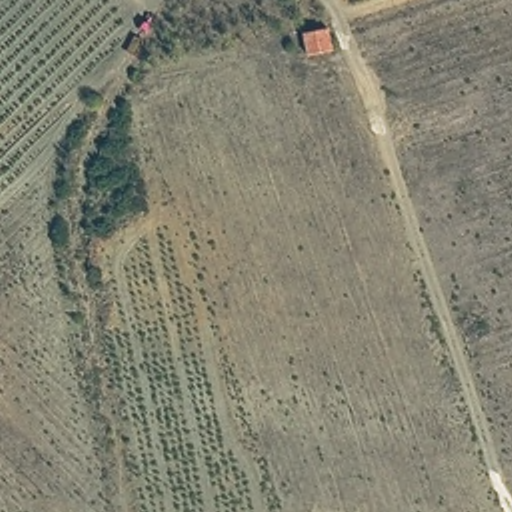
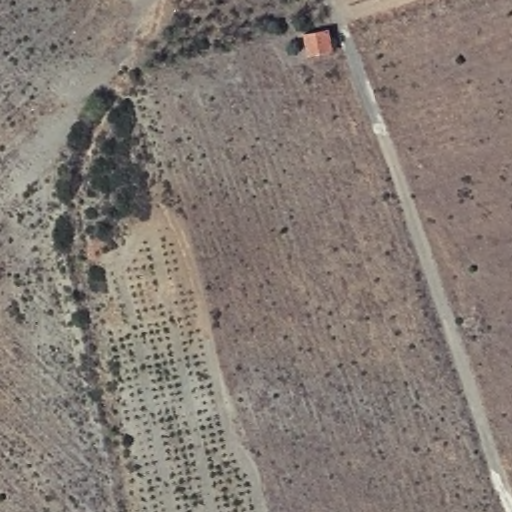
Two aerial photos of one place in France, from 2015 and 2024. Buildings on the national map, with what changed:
unchanged [(330,23),(335,41),(307,46),(302,28),(330,23)]

